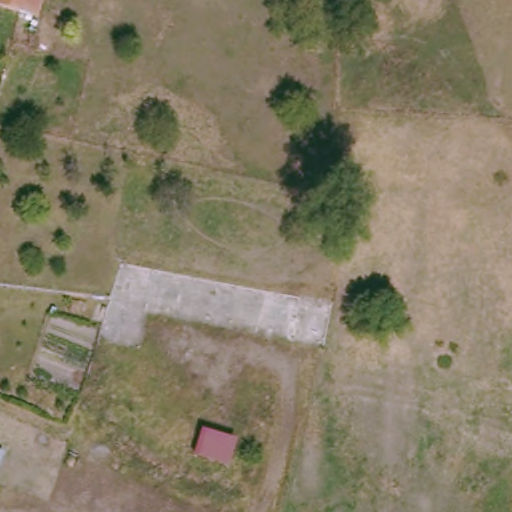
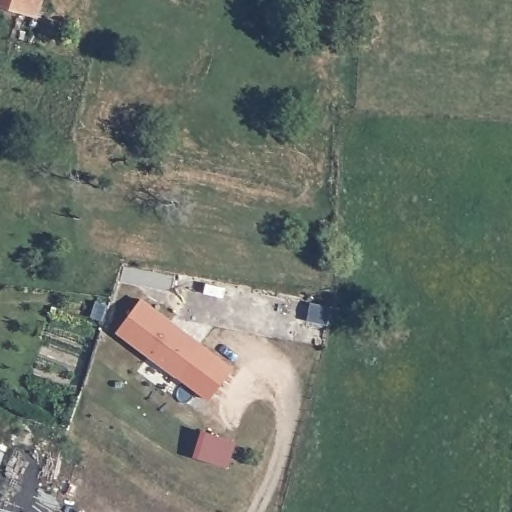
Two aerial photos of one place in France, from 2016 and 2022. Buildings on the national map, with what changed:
unchanged [(0,5),(0,0),(42,0),(37,17),(0,5)]
demolished [(328,348),(296,341),(303,297),(306,282),(341,289),(328,348)]
new [(141,300),(233,367),(209,400),(118,332),(141,300)]
new [(313,301),(333,305),(329,323),(309,319),(313,301)]
unchanged [(195,455),(203,431),(235,441),(227,465),(195,455)]
unchanged [(0,472),(0,451),(6,453),(0,472)]

